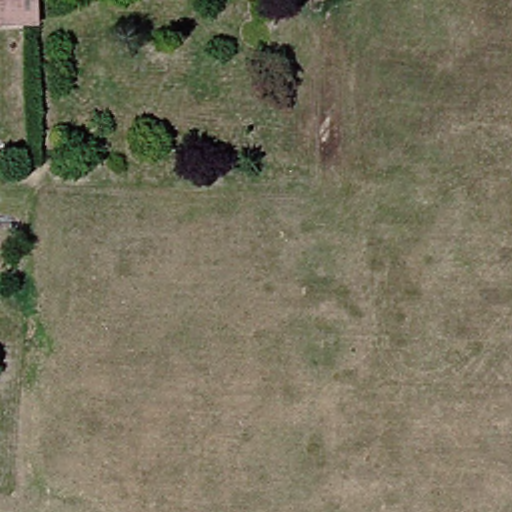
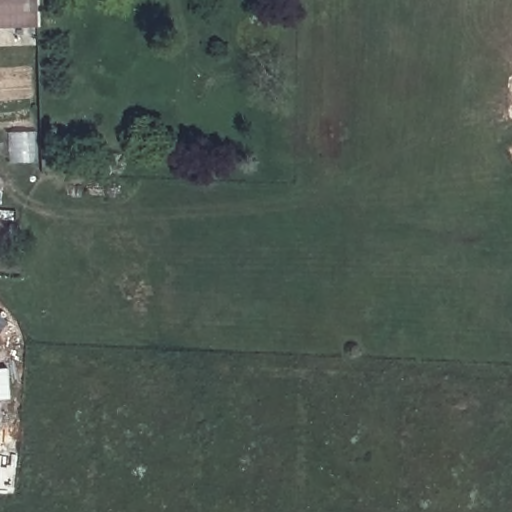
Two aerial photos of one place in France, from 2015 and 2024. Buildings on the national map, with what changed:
unchanged [(0,28),(0,0),(27,0),(28,26),(0,28)]

